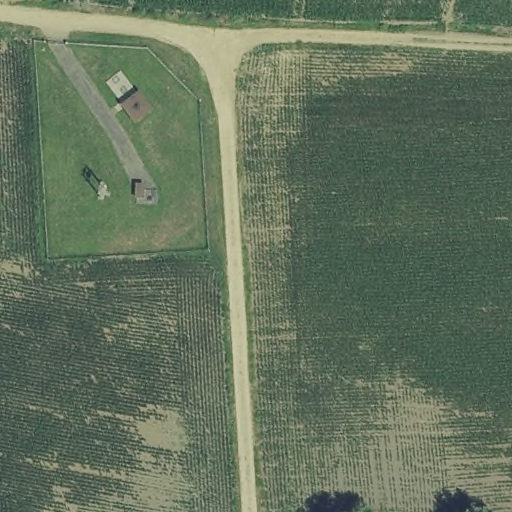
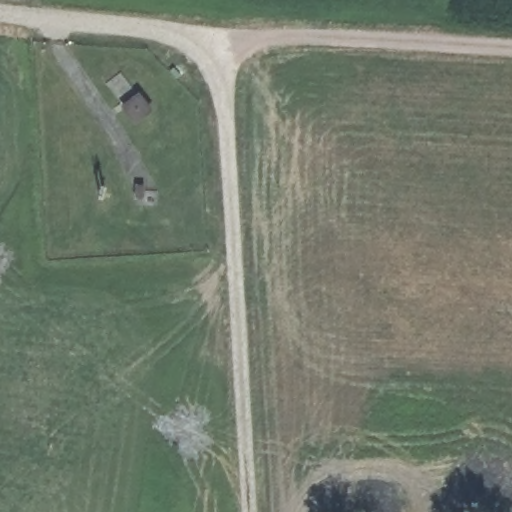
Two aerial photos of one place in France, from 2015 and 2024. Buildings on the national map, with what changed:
unchanged [(156,116),(137,130),(118,115),(142,95),(156,116)]

